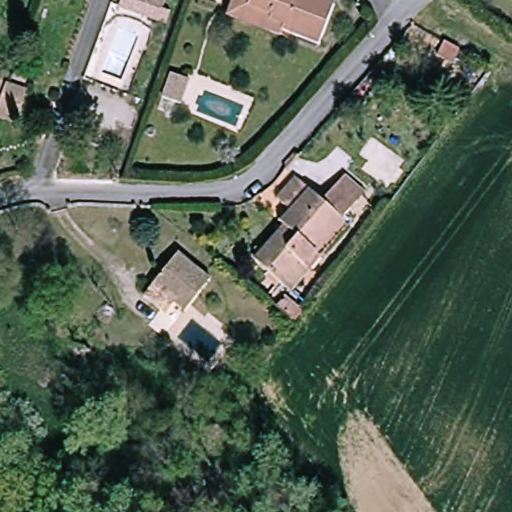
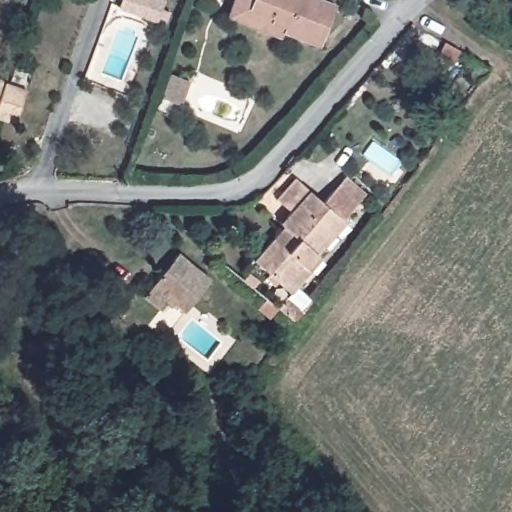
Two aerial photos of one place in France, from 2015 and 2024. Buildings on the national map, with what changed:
unchanged [(124,0),(168,0),(163,18),(121,8),(124,0)]
unchanged [(240,15),(241,12),(245,0),(336,0),(323,37),(292,27),(291,31),(240,15)]
unchanged [(193,81),(184,105),(165,98),(173,75),(193,81)]
unchanged [(1,117),(4,107),(9,92),(11,86),(28,92),(21,114),(18,123),(1,117)]
unchanged [(0,99),(0,89),(3,90),(0,99)]
unchanged [(312,266),(309,264),(293,283),(265,261),(291,227),(284,221),(291,212),(295,208),(281,196),(298,174),(326,197),(348,172),(370,190),(349,217),(324,250),(312,266)]
unchanged [(217,274),(193,309),(177,297),(170,306),(151,292),(181,248),(217,274)]

